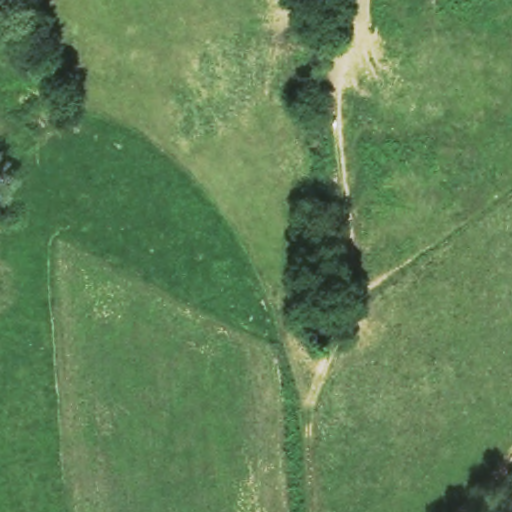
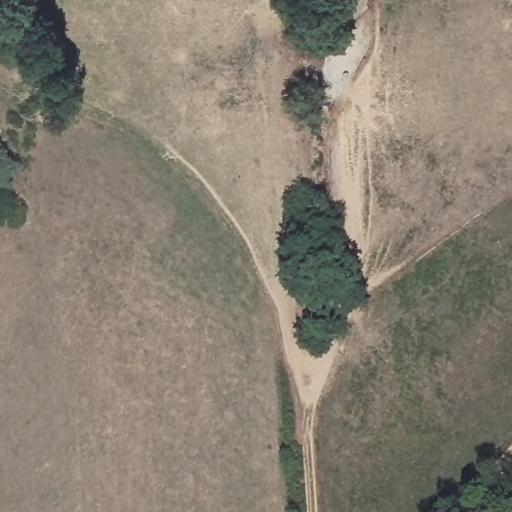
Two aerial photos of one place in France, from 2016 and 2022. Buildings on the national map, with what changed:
unchanged [(348,6),(349,24),(330,27),(328,7),(348,6)]

